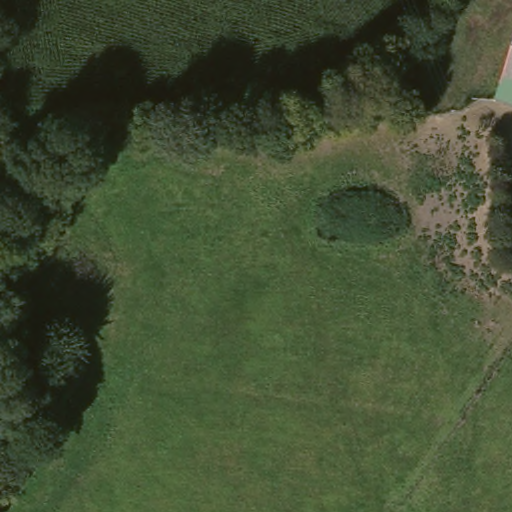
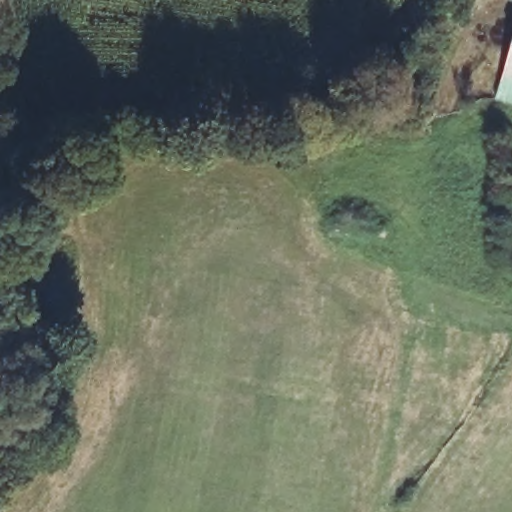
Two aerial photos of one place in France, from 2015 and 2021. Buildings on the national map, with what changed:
unchanged [(512,62),(512,99),(502,95),(512,62)]

